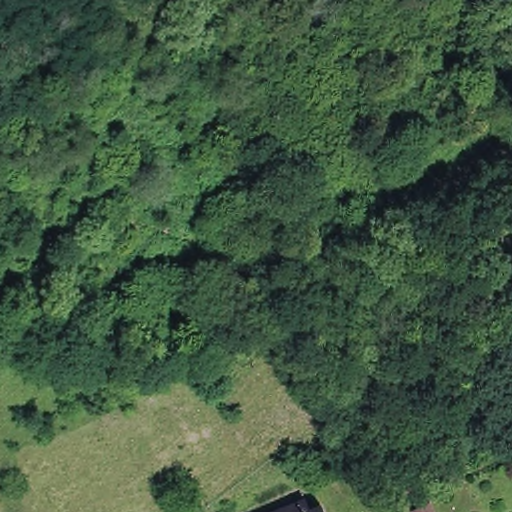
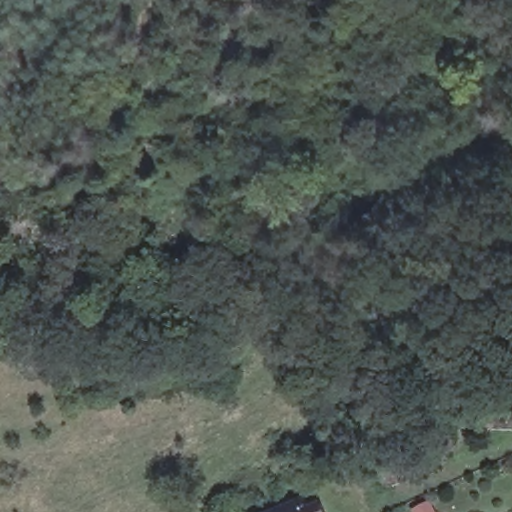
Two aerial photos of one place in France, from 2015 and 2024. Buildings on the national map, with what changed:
unchanged [(308,512),(280,512),(304,501),(308,512)]
unchanged [(418,512),(404,512),(417,507),(418,512)]
unchanged [(321,512),(311,512),(320,508),(321,512)]

